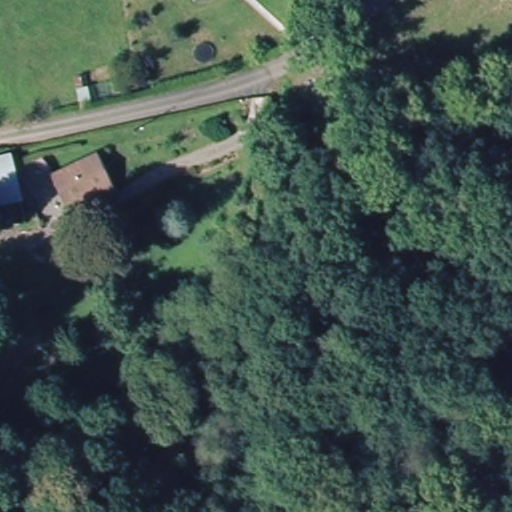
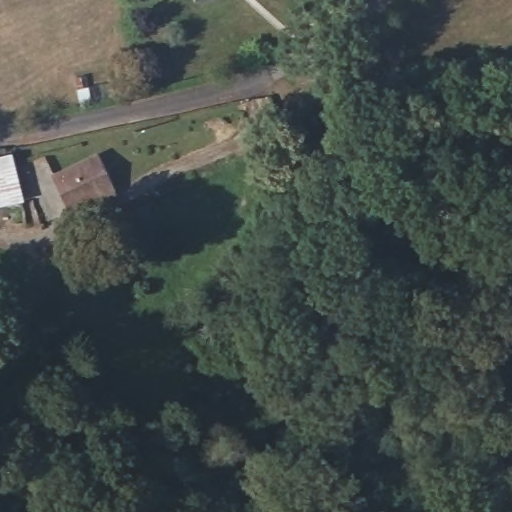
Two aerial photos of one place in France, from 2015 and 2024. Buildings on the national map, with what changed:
unchanged [(63,221),(43,187),(98,153),(120,181),(63,221)]
unchanged [(23,205),(0,213),(0,163),(7,160),(23,205)]

